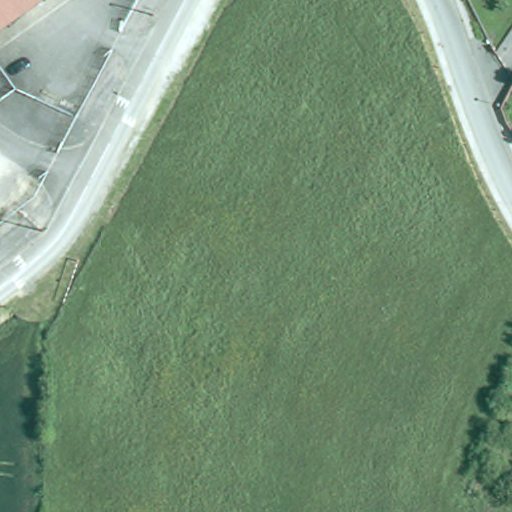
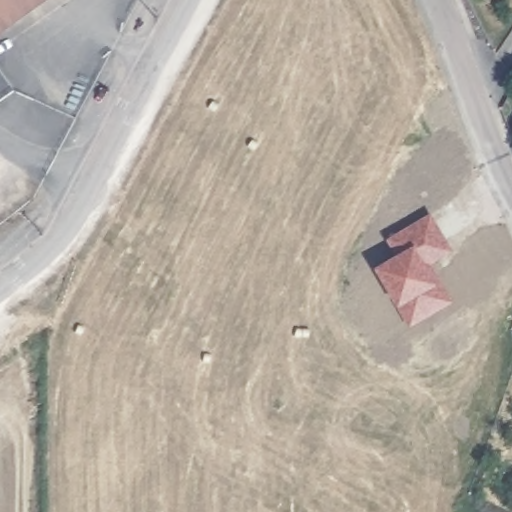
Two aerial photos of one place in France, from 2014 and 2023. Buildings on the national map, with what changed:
unchanged [(0,35),(0,0),(50,0),(0,35)]
new [(451,302),(409,324),(375,266),(397,254),(388,238),(430,214),(451,250),(429,262),(438,279),(451,302)]

